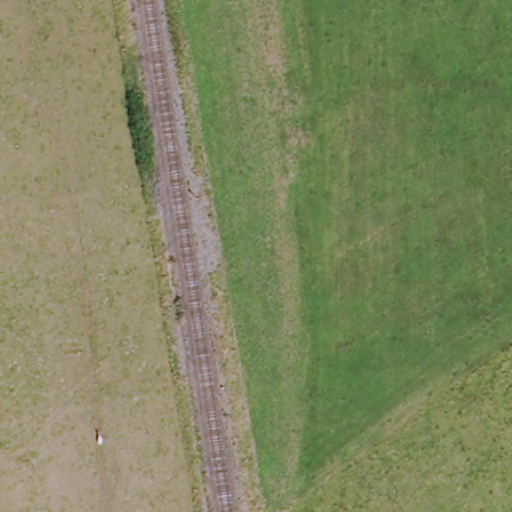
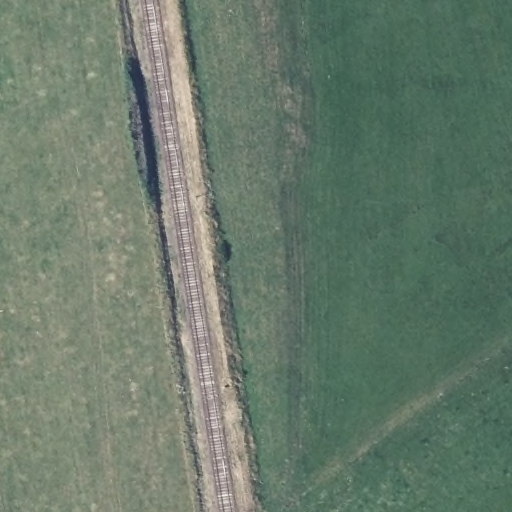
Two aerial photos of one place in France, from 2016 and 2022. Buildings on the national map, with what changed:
[]

